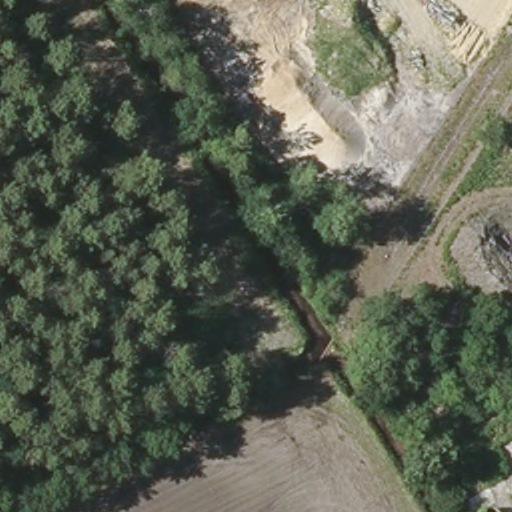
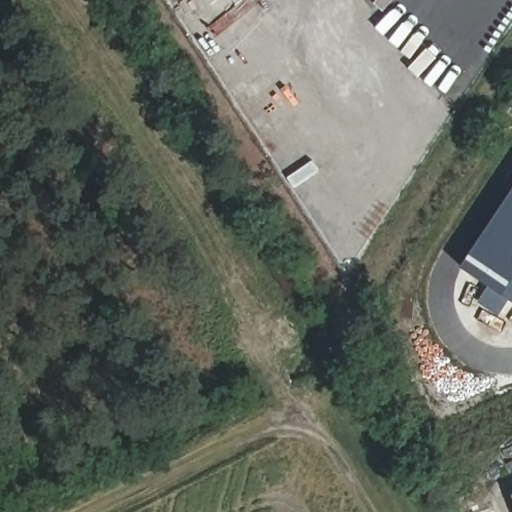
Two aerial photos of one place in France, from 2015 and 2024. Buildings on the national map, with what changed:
new [(510,299),(498,316),(477,303),(489,286),(462,267),(512,191),(512,300),(510,299)]
unchanged [(511,497),(512,497),(512,500),(511,497)]

